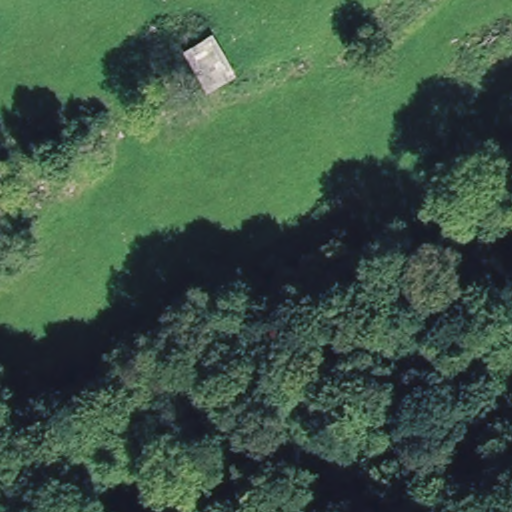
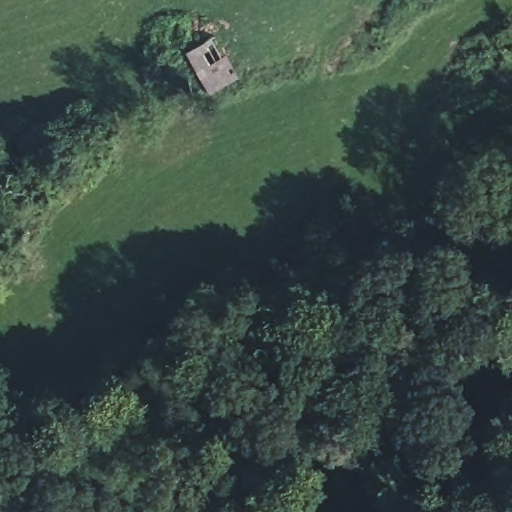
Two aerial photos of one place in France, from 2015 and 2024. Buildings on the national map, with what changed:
unchanged [(238,77),(207,94),(183,51),(213,33),(238,77)]

